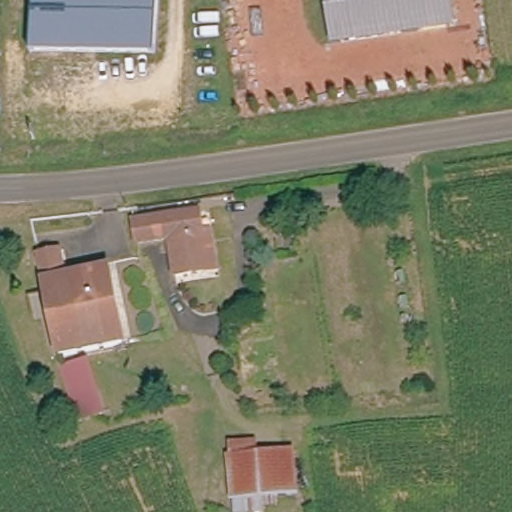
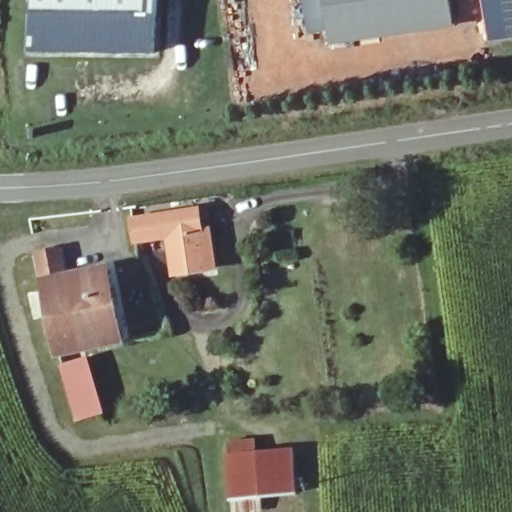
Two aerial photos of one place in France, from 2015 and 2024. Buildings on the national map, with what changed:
unchanged [(157,0),(154,55),(31,53),(33,0),(157,0)]
unchanged [(332,44),(326,0),(451,0),(456,26),(332,44)]
new [(490,42),(483,0),(512,0),(512,39),(490,42)]
unchanged [(217,268),(208,269),(172,274),(170,241),(142,243),(140,220),(203,215),(205,234),(214,233),(217,268)]
unchanged [(124,347),(62,360),(36,257),(61,251),(63,251),(69,277),(105,268),(124,347)]
unchanged [(102,418),(78,425),(65,370),(89,364),(102,418)]
unchanged [(296,493),(234,500),(230,455),(292,449),(296,493)]

